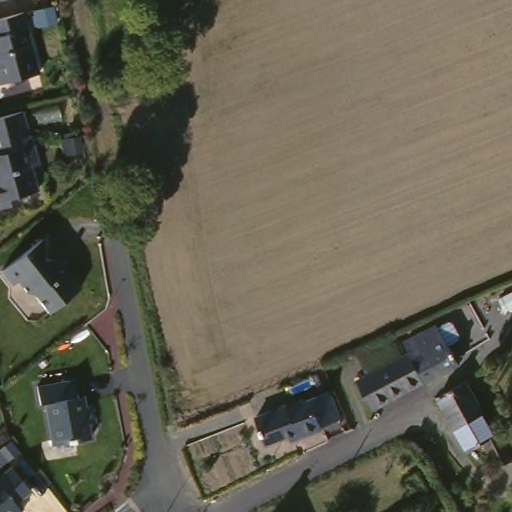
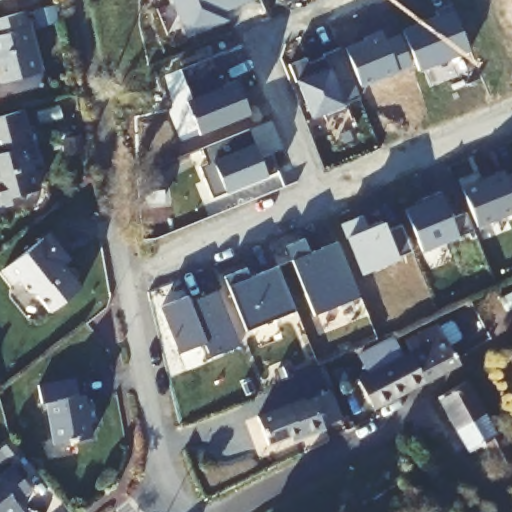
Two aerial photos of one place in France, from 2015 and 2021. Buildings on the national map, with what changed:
new [(260,11),(228,24),(231,34),(194,49),(174,0),(255,0),(260,11)]
new [(438,18),(436,12),(452,6),(470,51),(419,71),(403,32),(438,18)]
unchanged [(53,7),(57,23),(39,26),(36,11),(53,7)]
unchanged [(41,74),(1,85),(0,81),(0,19),(24,13),(41,74)]
new [(366,41),(365,39),(382,32),(386,42),(400,37),(412,66),(361,87),(346,49),(366,41)]
new [(307,58),(309,64),(324,58),(323,55),(340,49),(360,99),(345,105),(347,111),(325,120),(323,114),(312,118),(297,82),(295,83),(288,66),(307,58)]
new [(223,87),(226,86),(234,82),(238,93),(248,116),(201,135),(187,102),(192,99),(180,70),(211,58),(223,87)]
unchanged [(23,111),(32,146),(34,145),(40,165),(31,168),(38,192),(21,197),(23,204),(0,210),(0,117),(18,112),(23,111)]
new [(207,163),(201,149),(249,130),(261,159),(270,155),(277,172),(213,198),(200,167),(207,163)]
new [(505,172),(507,177),(512,175),(512,212),(478,226),(462,189),(505,172)]
new [(160,178),(162,203),(147,205),(145,179),(160,178)]
new [(423,203),(421,199),(440,191),(452,218),(466,212),(474,231),(422,251),(405,210),(423,203)]
new [(366,225),(381,218),(382,222),(385,229),(401,223),(412,251),(361,271),(342,222),(362,214),(366,225)]
unchanged [(87,289),(55,313),(41,295),(34,294),(24,281),(19,285),(8,271),(16,265),(34,251),(54,235),(60,243),(65,249),(67,252),(61,257),(87,289)]
new [(304,239),(310,253),(315,251),(317,258),(324,255),(320,249),(338,242),(360,296),(313,314),(286,246),(304,239)]
new [(246,269),(250,278),(278,267),(295,309),(245,330),(224,278),(246,269)]
new [(191,301),(197,299),(218,291),(239,343),(211,355),(206,343),(182,353),(163,306),(189,296),(191,301)]
unchanged [(414,362),(409,353),(404,344),(441,325),(459,364),(430,379),(424,382),(414,362)]
unchanged [(374,409),(358,380),(369,374),(360,357),(359,355),(388,340),(390,345),(391,345),(398,359),(409,353),(414,362),(424,382),(374,409)]
unchanged [(78,376),(82,393),(83,392),(88,396),(90,402),(97,400),(101,417),(93,419),(97,433),(59,442),(51,400),(45,402),(41,384),(78,376)]
unchanged [(503,472),(495,458),(488,446),(473,454),(443,401),(471,387),(501,438),(505,436),(511,449),(512,450),(512,467),(503,472)]
unchanged [(290,442),(269,453),(253,425),(298,401),(300,404),(325,391),(339,417),(321,427),(323,430),(300,443),(293,447),(290,442)]
unchanged [(11,442),(19,452),(8,461),(0,451),(11,442)]
unchanged [(22,512),(0,512),(0,477),(12,467),(31,491),(15,504),(22,512)]

